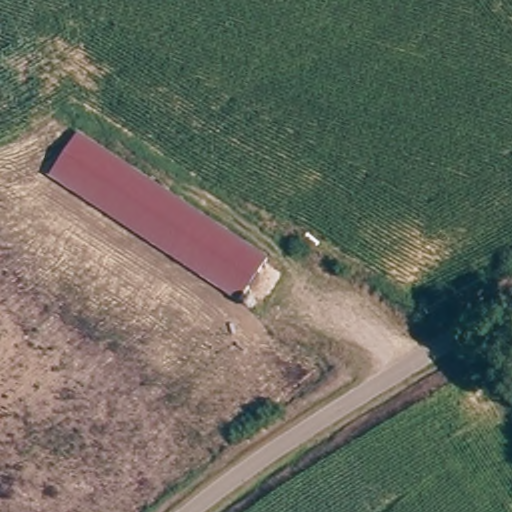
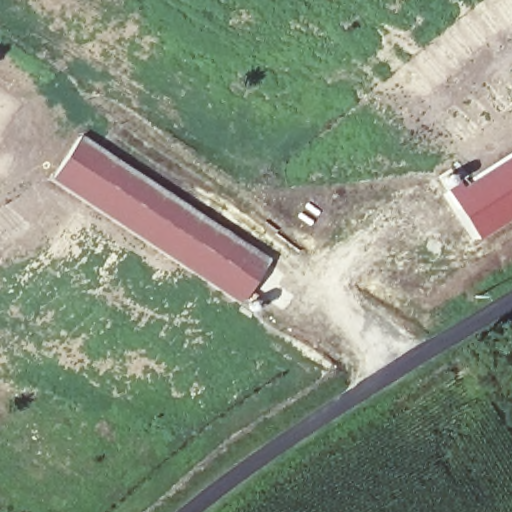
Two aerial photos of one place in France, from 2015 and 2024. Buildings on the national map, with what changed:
unchanged [(76,131),(264,263),(238,300),(50,170),(76,131)]
new [(477,241),(445,192),(460,183),(464,188),(512,158),(512,219),(477,241)]

